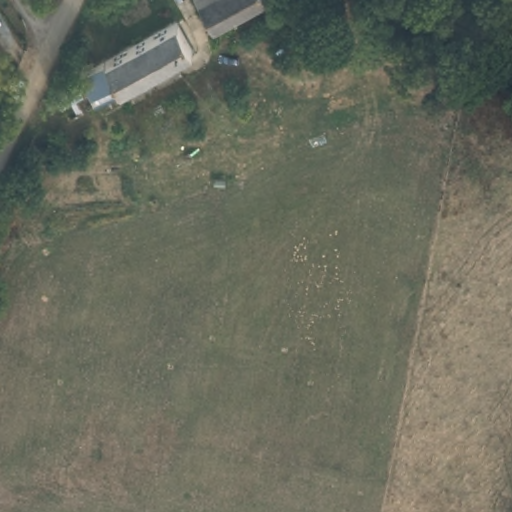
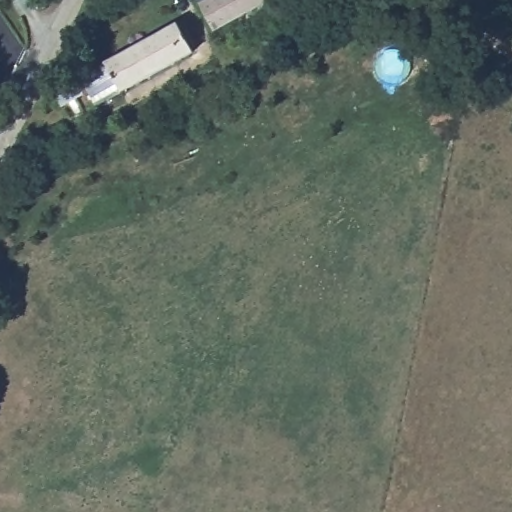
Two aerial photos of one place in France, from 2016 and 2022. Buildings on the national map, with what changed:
unchanged [(213,25),(200,0),(261,0),(213,25)]
unchanged [(179,20),(195,48),(102,100),(92,85),(66,100),(58,86),(179,20)]
unchanged [(47,161),(44,160),(42,165),(39,168),(35,168),(32,166),(30,164),(29,160),(30,155),(27,154),(34,139),(53,146),(47,161)]

